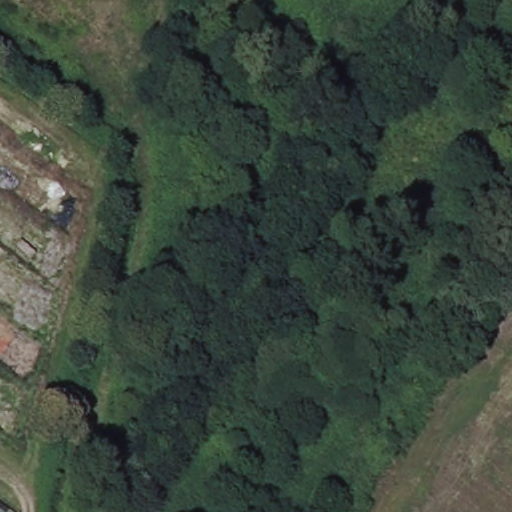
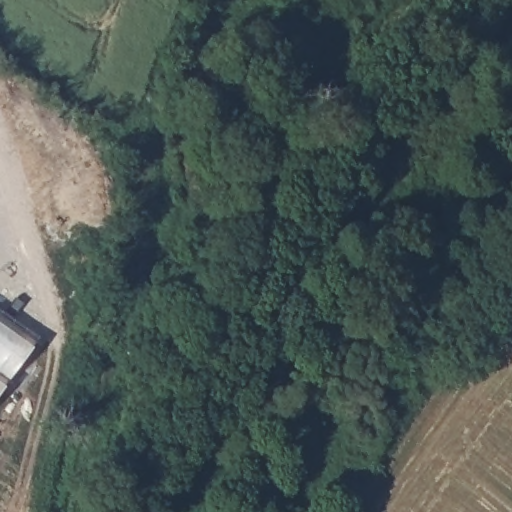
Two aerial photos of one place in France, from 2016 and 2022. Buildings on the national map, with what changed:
new [(0,393),(0,313),(37,340),(0,393)]
demolished [(0,502),(14,512),(0,512),(0,502)]

